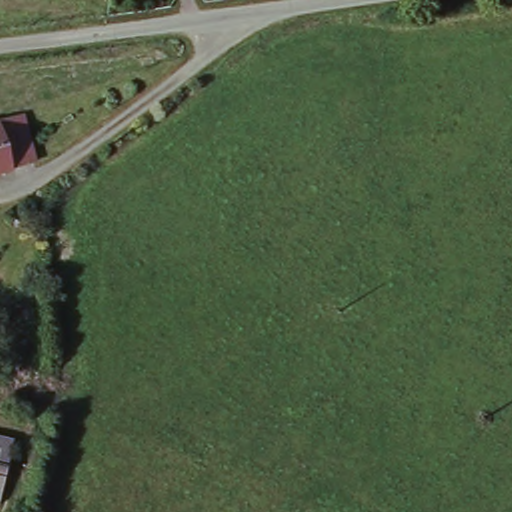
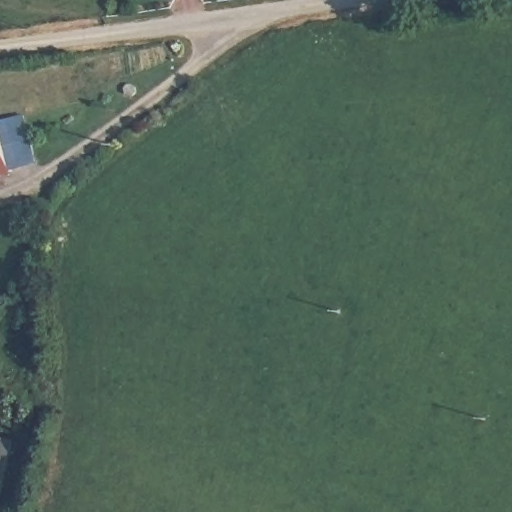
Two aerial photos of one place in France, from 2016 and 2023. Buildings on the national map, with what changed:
unchanged [(10,164),(0,133),(0,117),(19,112),(32,155),(10,164)]
unchanged [(10,164),(0,167),(0,133),(10,164)]
unchanged [(11,444),(0,498),(0,441),(11,444)]

